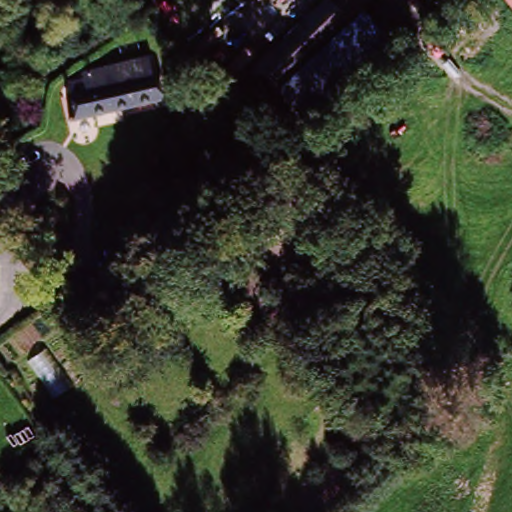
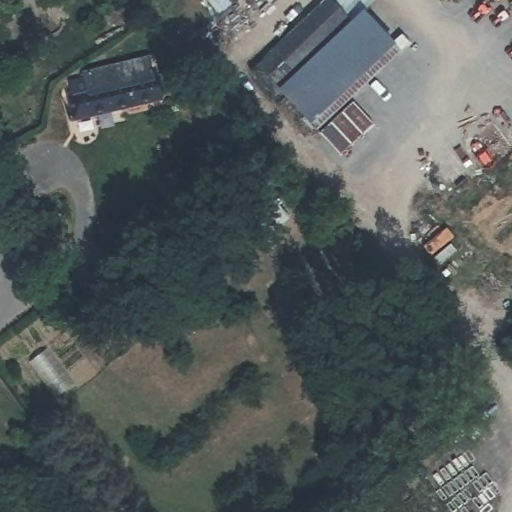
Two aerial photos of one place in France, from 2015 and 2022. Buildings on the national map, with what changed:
unchanged [(362,0),(280,90),(259,74),(325,0),(362,0)]
new [(365,8),(393,40),(311,121),(280,90),(365,8)]
unchanged [(128,53),(134,78),(154,74),(160,104),(78,121),(72,93),(91,90),(87,64),(128,53)]
unchanged [(22,173),(18,176),(37,211),(12,225),(0,205),(0,163),(13,156),(22,173)]
unchanged [(237,220),(262,239),(236,273),(211,255),(237,220)]

